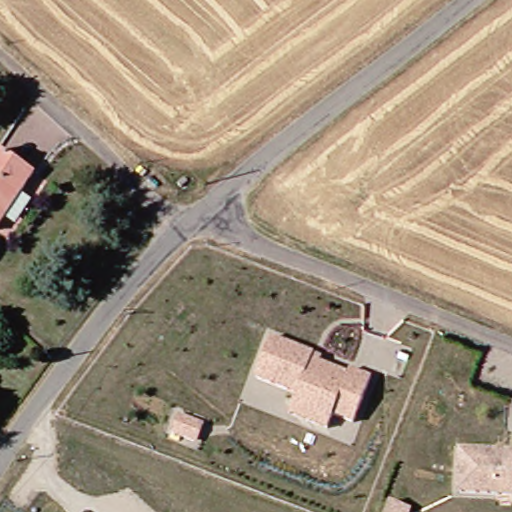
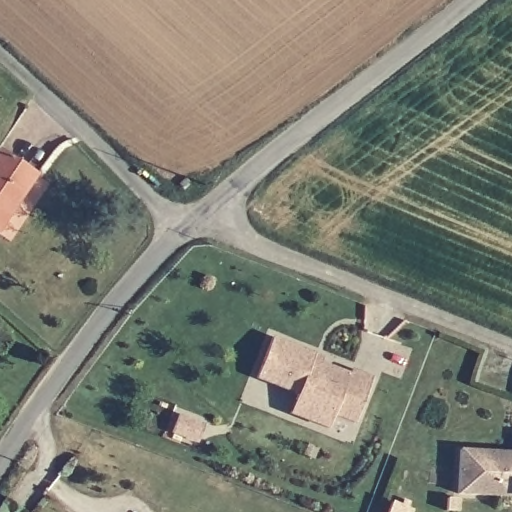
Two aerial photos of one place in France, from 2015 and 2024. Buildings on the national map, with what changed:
unchanged [(0,233),(0,156),(39,180),(0,233)]
unchanged [(289,417),(296,403),(298,397),(256,382),(271,341),(309,355),(321,361),(322,367),(351,377),(352,373),(374,381),(356,425),(335,418),(330,431),(289,417)]
unchanged [(195,445),(172,436),(178,418),(202,427),(195,445)]
unchanged [(461,447),(509,449),(512,450),(512,494),(459,491),(461,447)]

